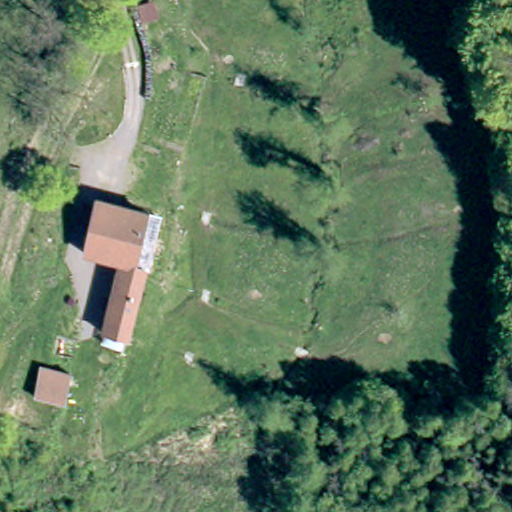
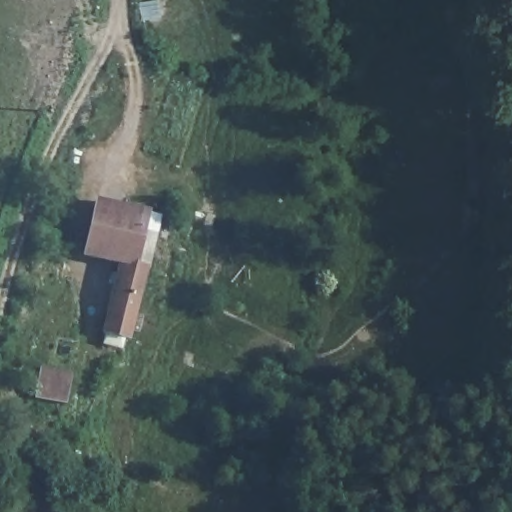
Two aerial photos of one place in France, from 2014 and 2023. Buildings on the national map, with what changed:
unchanged [(103,334),(106,314),(110,314),(120,265),(82,257),(96,197),(143,208),(130,264),(140,268),(128,338),(103,334)]
unchanged [(28,372),(54,376),(60,342),(82,346),(77,383),(62,408),(18,404),(28,372)]

